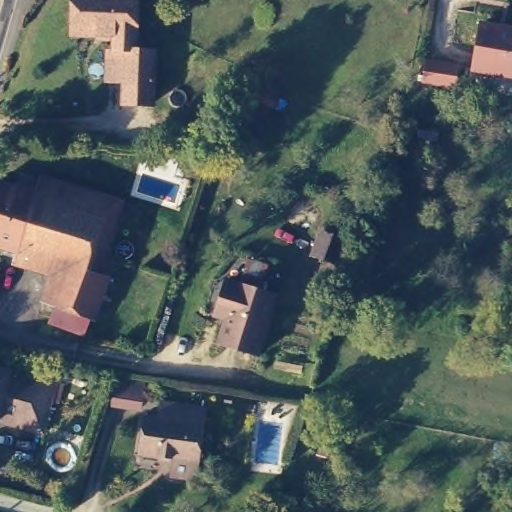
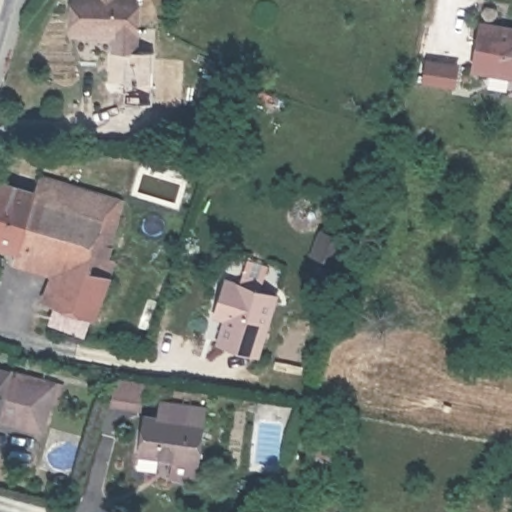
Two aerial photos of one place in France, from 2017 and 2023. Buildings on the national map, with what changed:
unchanged [(112,49),(130,49),(130,48),(118,48),(118,32),(76,31),(77,0),(140,0),(140,48),(158,48),(157,100),(129,99),(130,77),(112,77),(112,49)]
unchanged [(504,27),(512,29),(512,72),(475,65),(485,20),(504,23),(504,27)]
unchanged [(460,65),(456,85),(423,80),(427,60),(460,65)]
unchanged [(110,331),(99,328),(50,314),(60,275),(0,258),(0,192),(9,195),(17,198),(30,201),(35,187),(101,207),(115,211),(102,256),(99,268),(105,270),(102,284),(122,290),(110,331)]
unchanged [(320,226),(353,239),(344,265),(311,253),(320,226)]
unchanged [(262,360),(223,349),(229,326),(218,323),(222,312),(230,286),(244,290),(246,282),(265,287),(263,295),(280,300),(262,360)]
unchanged [(10,369),(57,379),(42,426),(20,421),(0,416),(0,366),(10,369)]
unchanged [(200,474),(197,492),(171,488),(173,470),(139,465),(145,429),(160,431),(162,413),(208,420),(200,474)]

